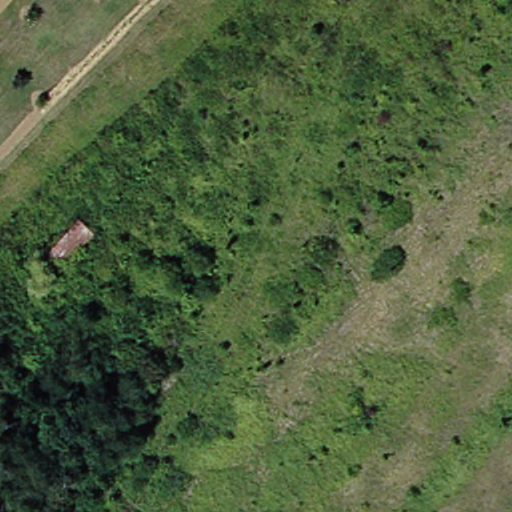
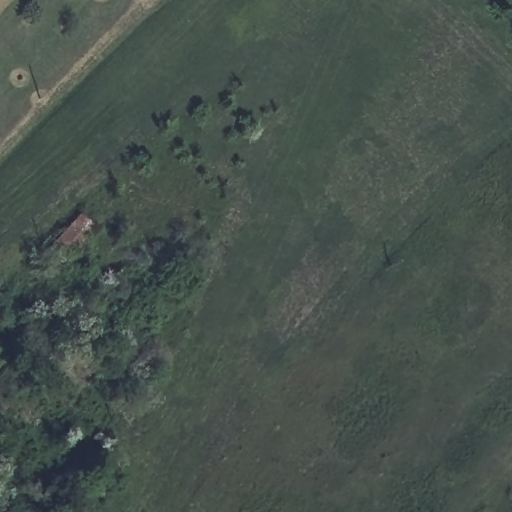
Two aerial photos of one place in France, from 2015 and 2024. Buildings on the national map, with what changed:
unchanged [(82,224),(96,236),(67,265),(55,252),(82,224)]

